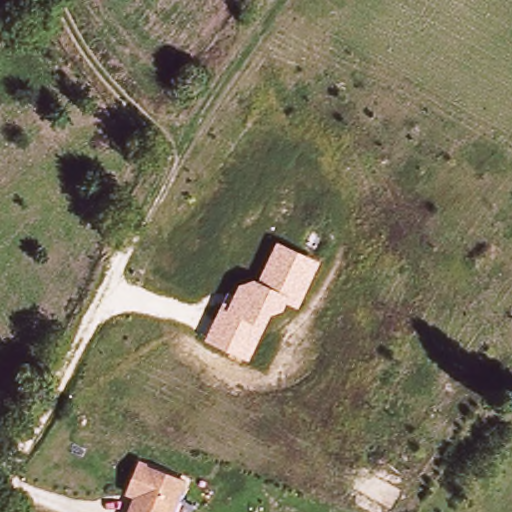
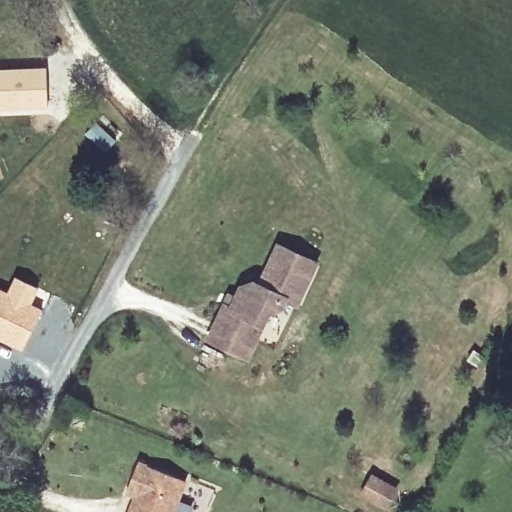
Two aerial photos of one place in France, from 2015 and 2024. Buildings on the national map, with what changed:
new [(47,66),(49,109),(0,109),(0,68),(47,66)]
new [(96,120),(117,141),(105,154),(83,134),(96,120)]
unchanged [(321,262),(300,309),(286,303),(283,312),(270,316),(250,362),(205,342),(231,285),(239,287),(260,282),(277,242),(321,262)]
new [(10,296),(18,278),(39,289),(30,306),(42,312),(23,351),(0,339),(0,291),(10,296)]
unchanged [(146,457),(192,477),(178,512),(134,512),(138,501),(142,491),(132,488),(146,457)]
new [(375,480),(398,492),(388,509),(366,497),(375,480)]

